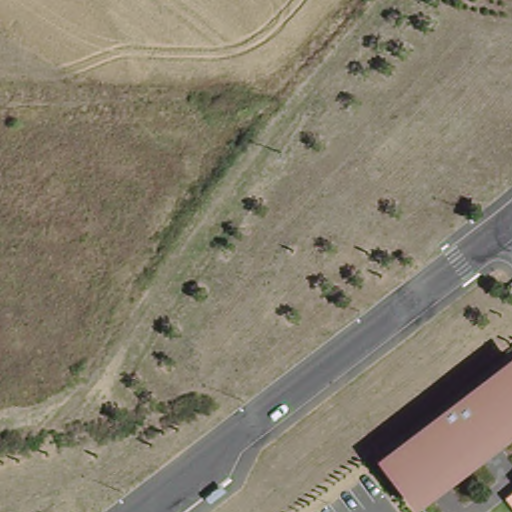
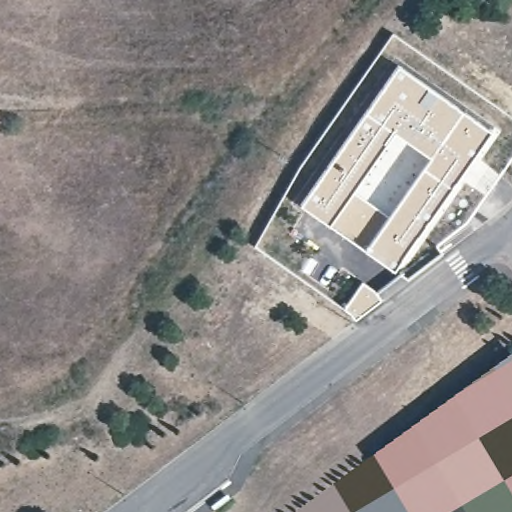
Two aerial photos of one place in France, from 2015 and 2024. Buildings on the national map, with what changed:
new [(398,66),(491,131),(394,270),(301,204),(398,66)]
new [(362,279),(367,283),(383,298),(355,320),(342,309),(362,279)]
unchanged [(421,509),(380,459),(512,359),(512,439),(421,509)]

